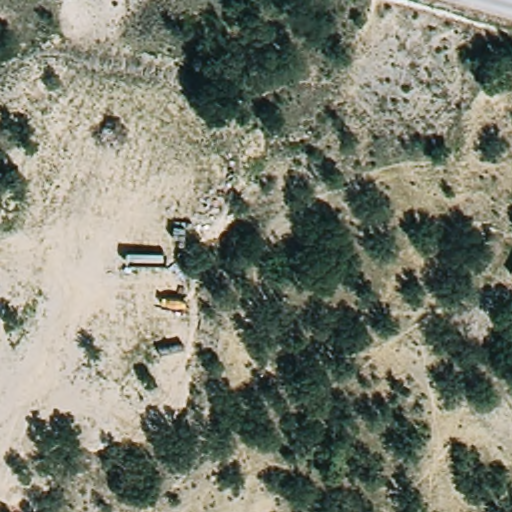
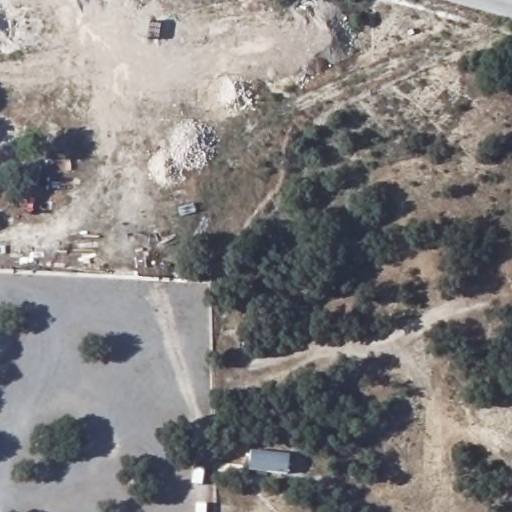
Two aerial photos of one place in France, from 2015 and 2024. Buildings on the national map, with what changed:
new [(286,475),(248,470),(251,451),(289,456),(286,475)]

